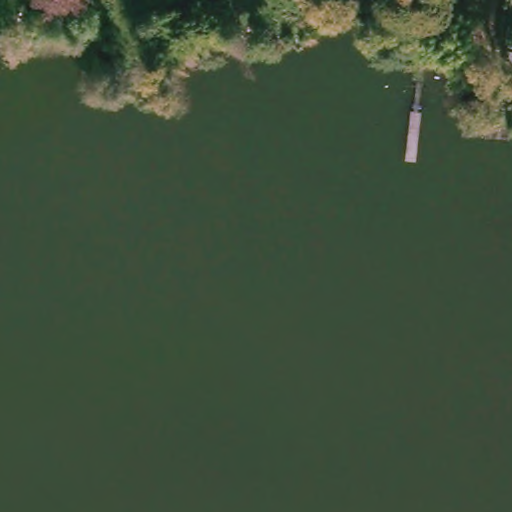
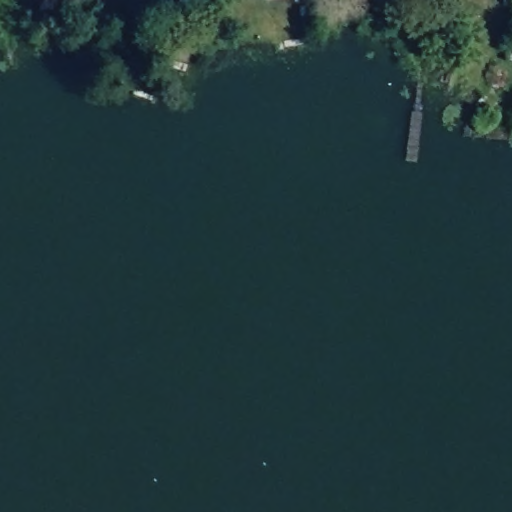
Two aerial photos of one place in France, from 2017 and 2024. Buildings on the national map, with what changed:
unchanged [(475,108),(483,119),(470,130),(462,119),(475,108)]

